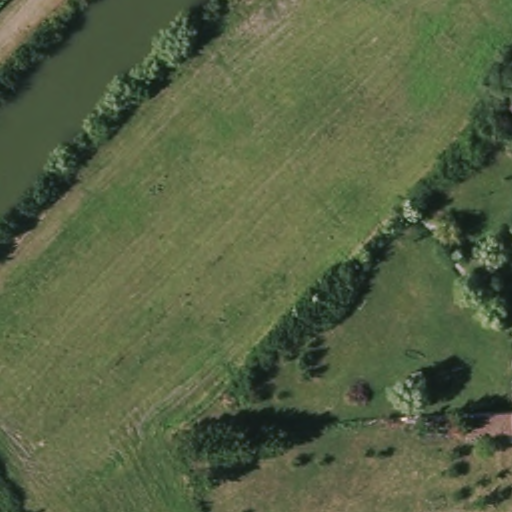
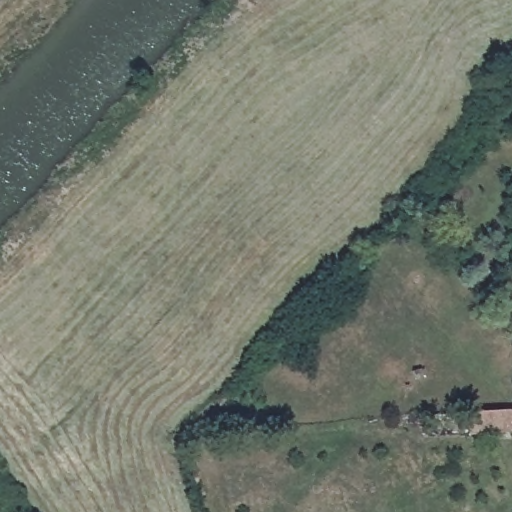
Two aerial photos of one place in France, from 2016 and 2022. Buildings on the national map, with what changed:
unchanged [(468,423),(512,419),(512,438),(470,441),(468,423)]

